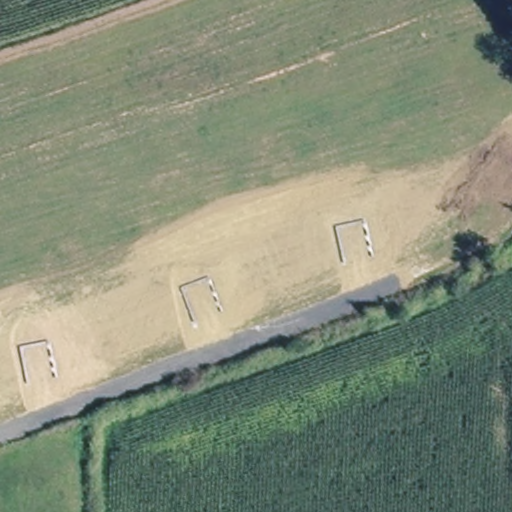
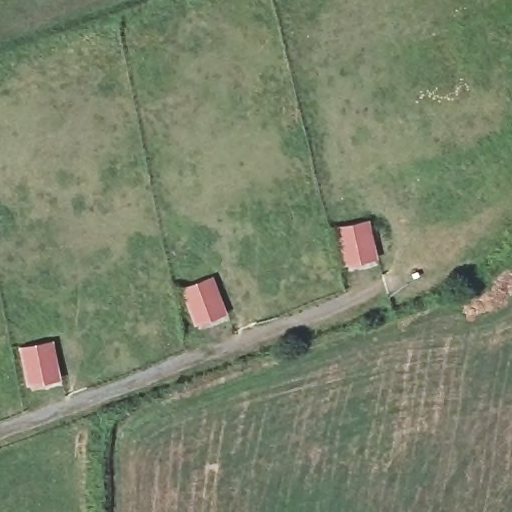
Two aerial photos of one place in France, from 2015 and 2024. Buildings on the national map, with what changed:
new [(365,225),(373,263),(344,270),(336,232),(365,225)]
new [(208,284),(222,320),(194,330),(180,295),(208,284)]
new [(49,346),(56,383),(27,390),(19,352),(49,346)]

